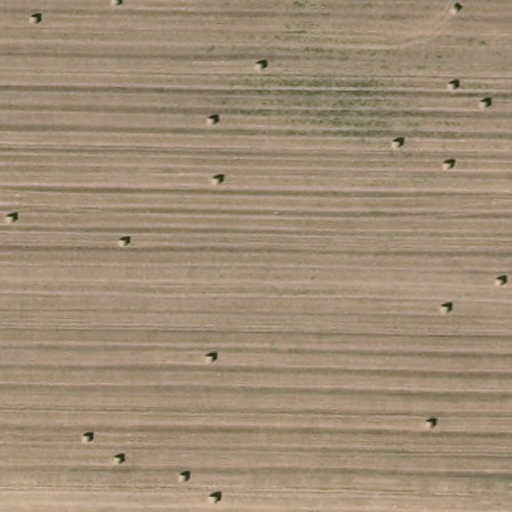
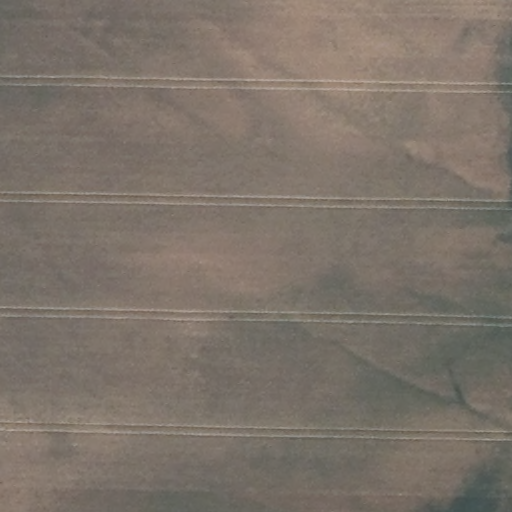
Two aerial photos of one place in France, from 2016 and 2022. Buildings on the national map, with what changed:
[]

